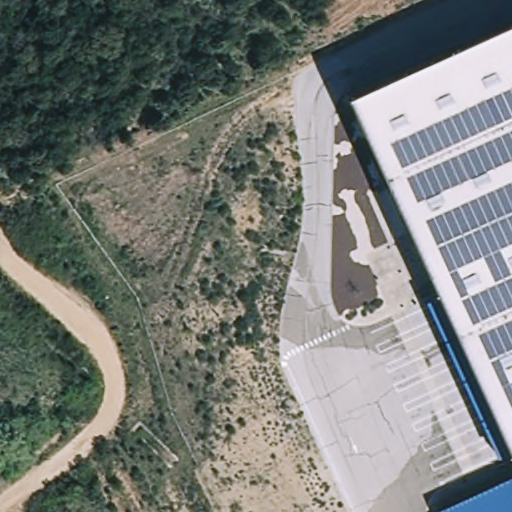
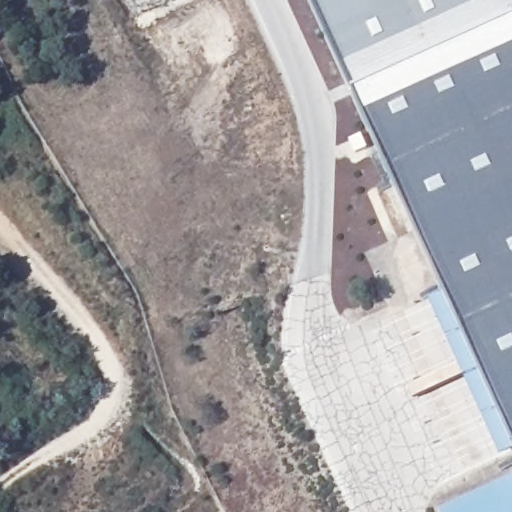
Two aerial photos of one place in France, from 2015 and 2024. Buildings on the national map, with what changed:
new [(350,97),(307,0),(512,0),(512,22),(358,94),(350,97)]
unchanged [(512,22),(512,327),(358,94),(512,22)]
unchanged [(358,94),(512,327),(512,450),(350,97),(358,94)]
unchanged [(512,512),(437,512),(437,511),(512,477),(512,512)]

